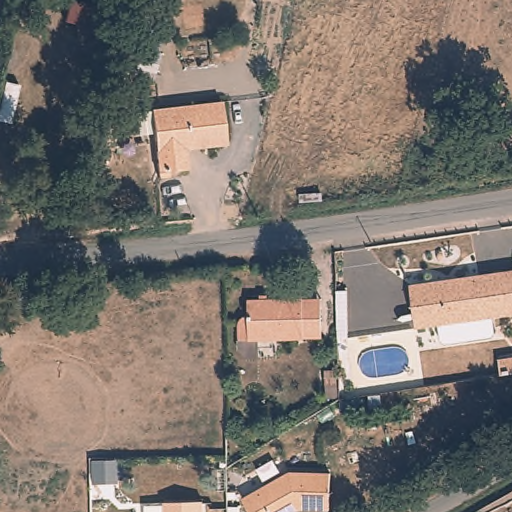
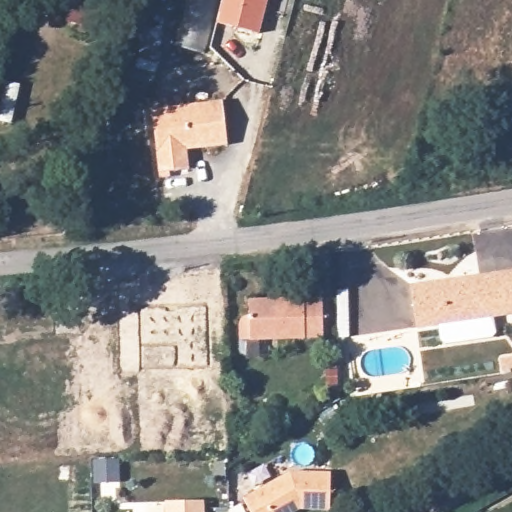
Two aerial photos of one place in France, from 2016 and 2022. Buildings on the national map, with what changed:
new [(223,0),(269,0),(261,35),(217,24),(223,0)]
unchanged [(114,36),(107,34),(79,27),(85,7),(111,14),(118,16),(114,36)]
unchanged [(158,179),(158,174),(154,111),(224,106),(227,149),(195,152),(186,152),(187,172),(168,174),(169,179),(158,179)]
unchanged [(408,287),(512,272),(512,316),(498,317),(440,327),(415,331),(408,287)]
unchanged [(241,332),(250,325),(248,310),(283,305),(282,298),(301,296),(302,301),(321,298),(327,337),(309,340),(244,350),(241,332)]
unchanged [(498,317),(501,337),(442,346),(440,327),(498,317)]
unchanged [(508,372),(506,357),(512,357),(512,371),(508,372)]
unchanged [(325,510),(300,509),(296,512),(250,512),(243,502),(287,473),(326,474),(325,510)]
unchanged [(202,512),(163,512),(163,507),(201,504),(202,512)]

